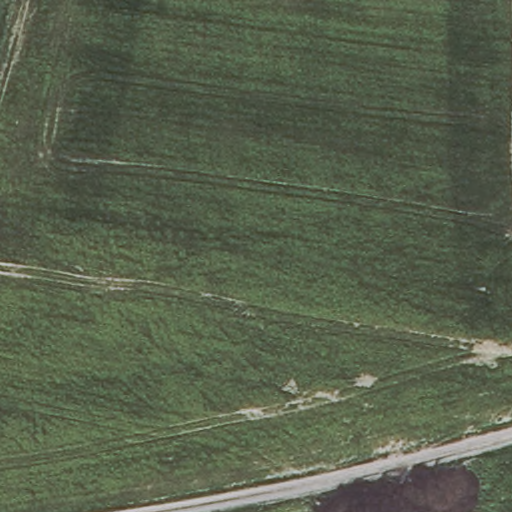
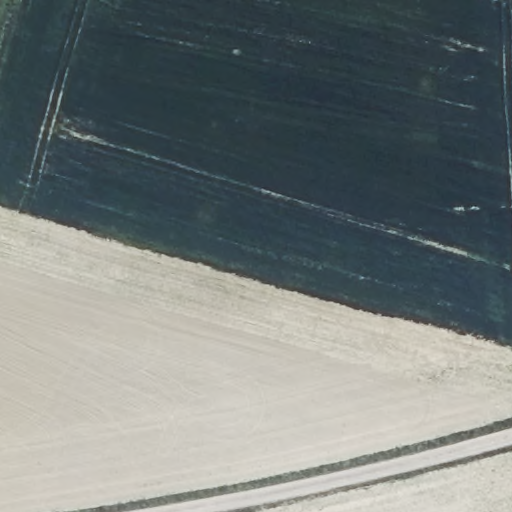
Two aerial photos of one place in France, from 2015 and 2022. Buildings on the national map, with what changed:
[]

